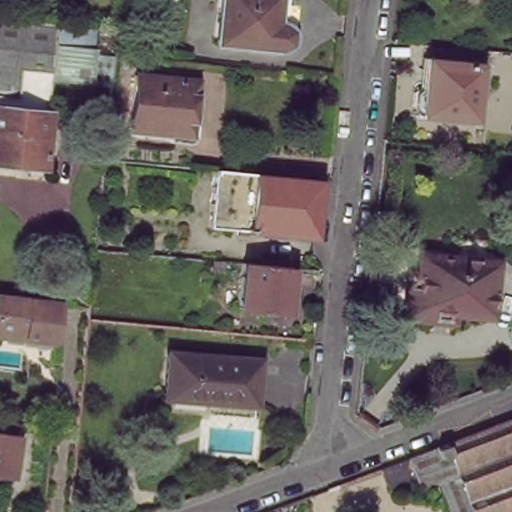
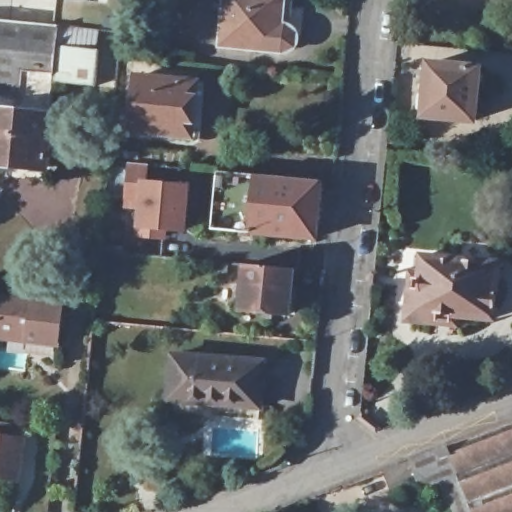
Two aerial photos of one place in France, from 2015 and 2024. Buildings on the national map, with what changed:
unchanged [(287,26),(290,27),(292,27),(294,29),(295,30),(297,32),(297,35),(297,38),(295,47),(289,52),(220,45),(225,0),(289,0),(286,26),(287,26)]
unchanged [(38,168),(0,164),(0,20),(55,27),(96,33),(93,56),(89,94),(47,89),(38,168)]
unchanged [(479,120),(425,115),(425,111),(422,110),(421,109),(420,105),(420,102),(421,99),(422,96),(422,94),(423,92),(427,92),(430,62),(485,67),(479,120)]
unchanged [(190,135),(129,130),(135,76),(195,82),(190,135)]
new [(128,162),(150,164),(148,180),(191,183),(187,231),(165,229),(165,239),(137,237),(137,227),(138,208),(125,207),(128,162)]
unchanged [(213,227),(220,171),(323,181),(317,238),(213,227)]
unchanged [(494,288),(497,288),(495,318),(460,315),(460,327),(410,324),(413,287),(420,288),(422,257),(497,262),(494,288)]
unchanged [(243,309),(248,265),(295,270),(290,314),(243,309)]
unchanged [(63,299),(63,308),(62,323),(60,337),(0,333),(0,301),(0,294),(63,299)]
unchanged [(258,410),(215,406),(215,401),(168,398),(170,356),(260,363),(258,410)]
unchanged [(440,483),(438,480),(423,486),(417,473),(392,482),(385,465),(410,456),(422,452),(440,445),(450,441),(512,417),(512,512),(452,512),(440,483)]
unchanged [(15,476),(15,482),(0,481),(0,434),(25,438),(18,477),(15,476)]

